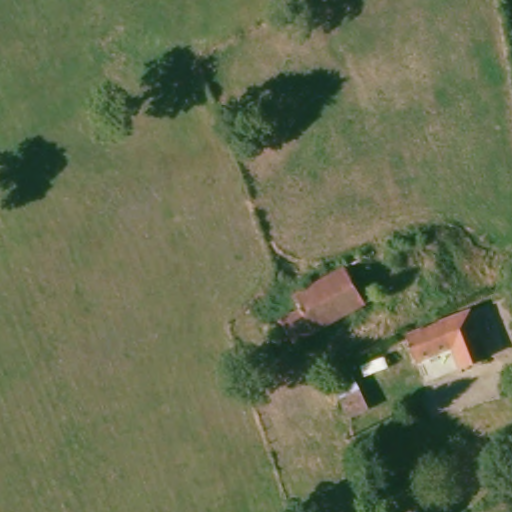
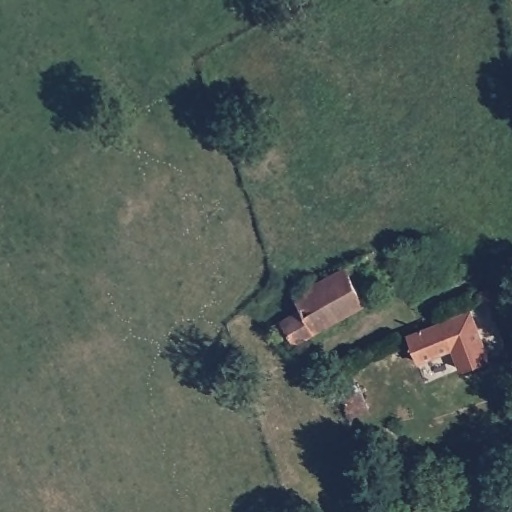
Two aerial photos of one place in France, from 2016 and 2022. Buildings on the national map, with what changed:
unchanged [(367,303),(300,345),(297,338),(287,345),(277,320),(299,306),(295,294),(349,262),(367,303)]
unchanged [(470,307),(492,351),(470,362),(459,343),(426,362),(412,341),(470,307)]
unchanged [(326,376),(352,365),(371,409),(347,421),(326,376)]

